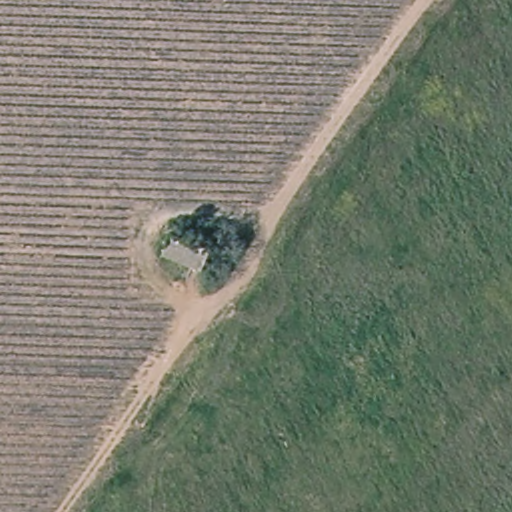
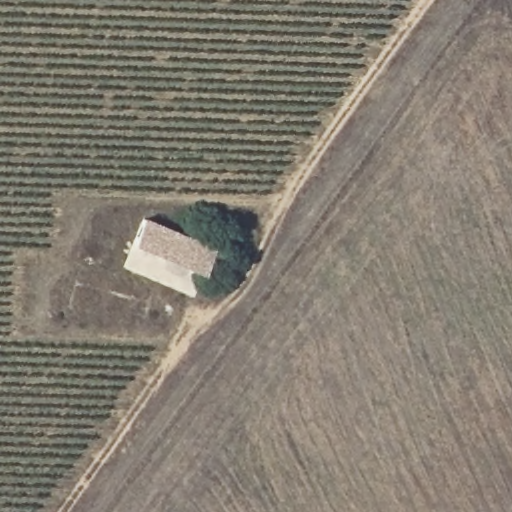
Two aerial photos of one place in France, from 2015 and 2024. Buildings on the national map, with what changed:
new [(214,247),(204,275),(133,244),(144,217),(214,247)]
demolished [(207,251),(198,272),(159,255),(168,234),(207,251)]

